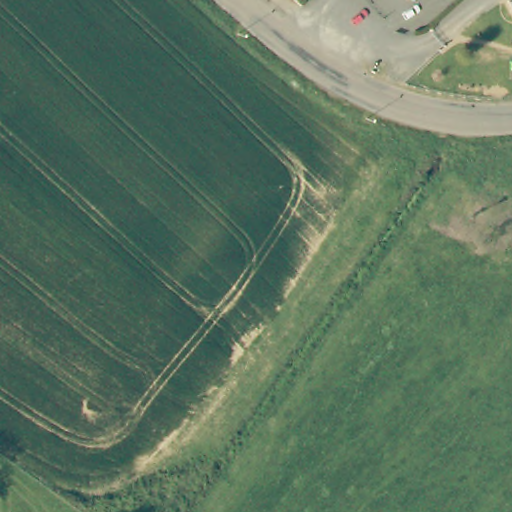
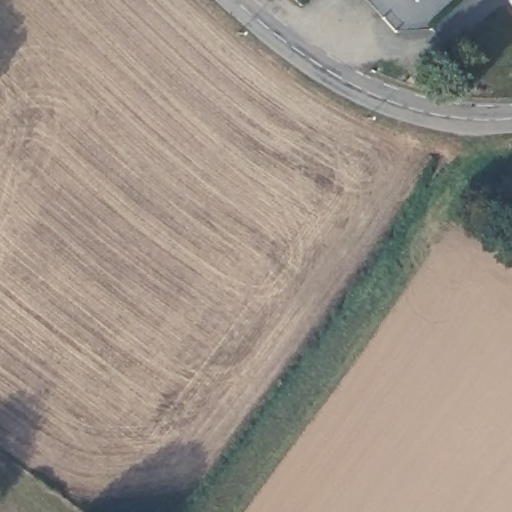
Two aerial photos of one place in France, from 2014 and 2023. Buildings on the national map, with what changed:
unchanged [(507,1),(509,0),(512,0),(512,10),(507,1)]

